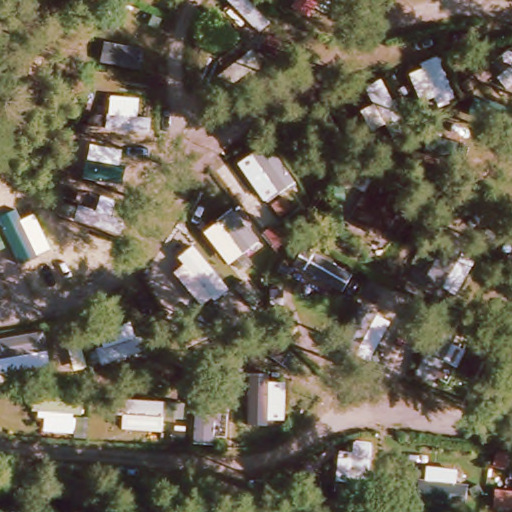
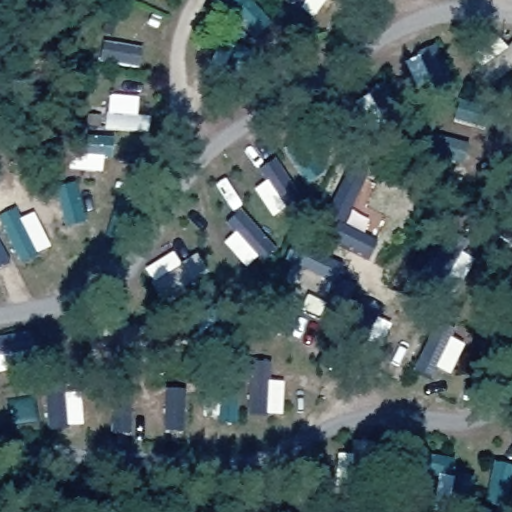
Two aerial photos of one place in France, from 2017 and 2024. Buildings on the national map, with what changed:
unchanged [(289,6),(293,0),(318,0),(308,14),(289,6)]

